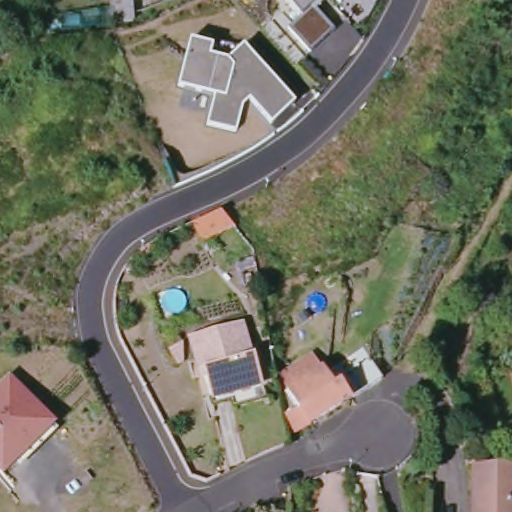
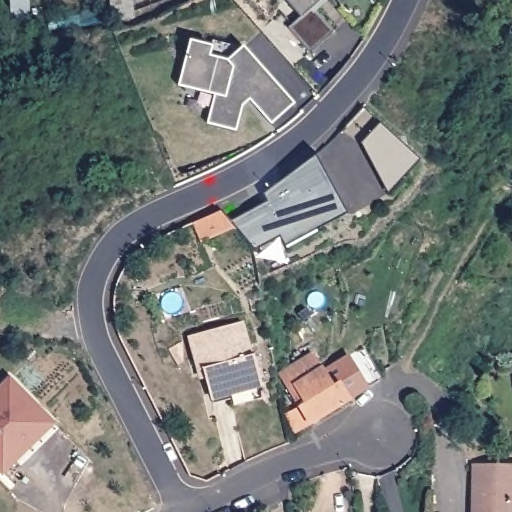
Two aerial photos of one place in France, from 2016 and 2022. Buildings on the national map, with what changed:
unchanged [(130,16),(110,16),(109,0),(130,0),(130,16)]
unchanged [(319,9),(340,33),(334,38),(315,54),(297,35),(293,29),(305,19),(290,0),(328,0),(319,9)]
unchanged [(345,7),(339,0),(353,0),(345,7)]
unchanged [(363,2),(361,0),(365,0),(363,2)]
unchanged [(275,125),(254,101),(247,107),(240,132),(212,124),(219,96),(182,87),(194,41),(217,47),(214,56),(232,61),(247,47),(299,104),(275,125)]
new [(388,194),(360,143),(380,122),(420,159),(388,194)]
new [(285,245),(280,235),(254,249),(230,221),(268,201),(265,195),(315,156),(347,213),(285,245)]
unchanged [(230,231),(200,244),(192,225),(220,212),(225,224),(230,229),(231,231),(230,231)]
unchanged [(228,402),(225,387),(205,392),(198,363),(194,364),(186,330),(240,318),(247,351),(250,351),(257,380),(260,395),(228,402)]
unchanged [(287,377),(319,357),(341,387),(345,384),(355,398),(320,422),(303,430),(297,414),(295,404),(292,391),(296,389),(287,377)]
unchanged [(511,365),(512,365),(512,369),(511,365)]
unchanged [(55,427),(2,474),(0,471),(0,392),(13,381),(55,427)]
unchanged [(475,499),(475,465),(512,465),(512,512),(480,512),(480,499),(475,499)]

